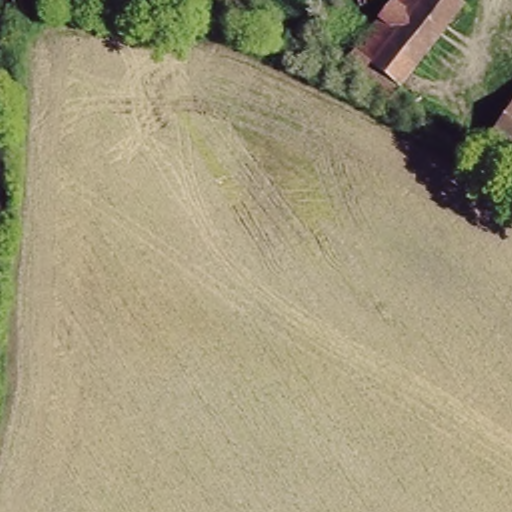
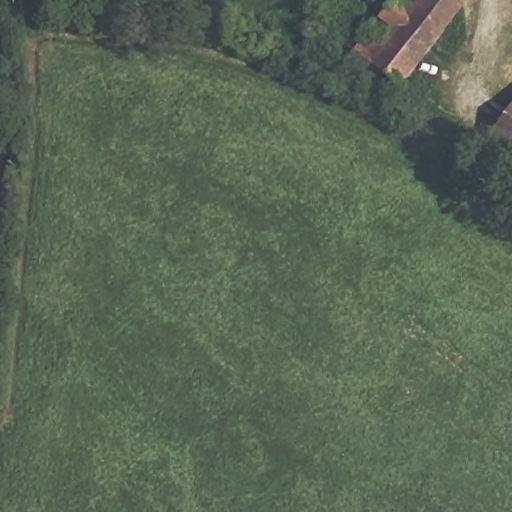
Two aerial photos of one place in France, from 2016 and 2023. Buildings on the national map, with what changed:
unchanged [(344,66),(395,0),(455,0),(467,7),(392,99),(344,66)]
unchanged [(512,104),(512,161),(485,144),(512,104)]

